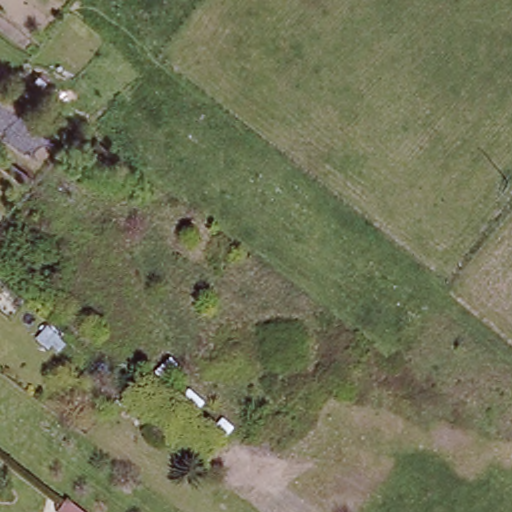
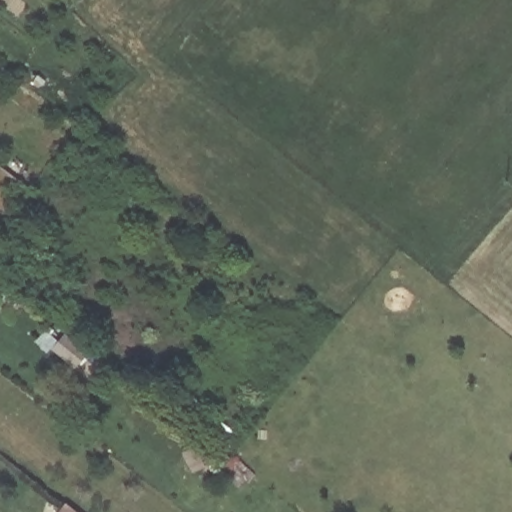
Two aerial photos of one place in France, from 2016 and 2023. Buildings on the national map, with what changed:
unchanged [(8,216),(3,223),(0,220),(0,211),(8,216)]
unchanged [(81,512),(57,512),(66,500),(81,512)]

